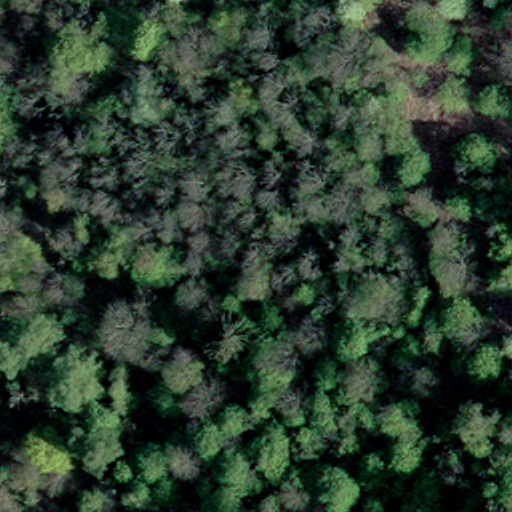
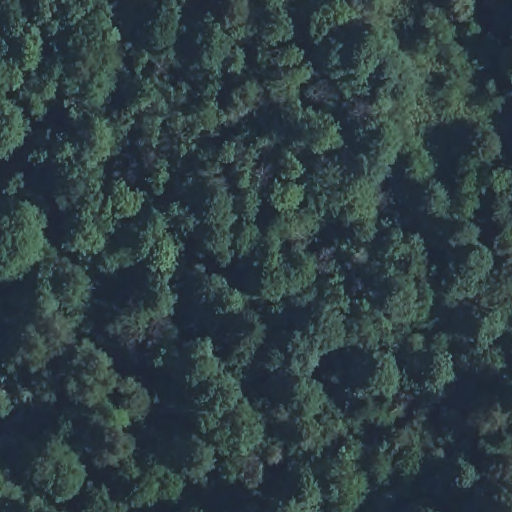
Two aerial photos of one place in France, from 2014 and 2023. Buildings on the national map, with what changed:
[]

